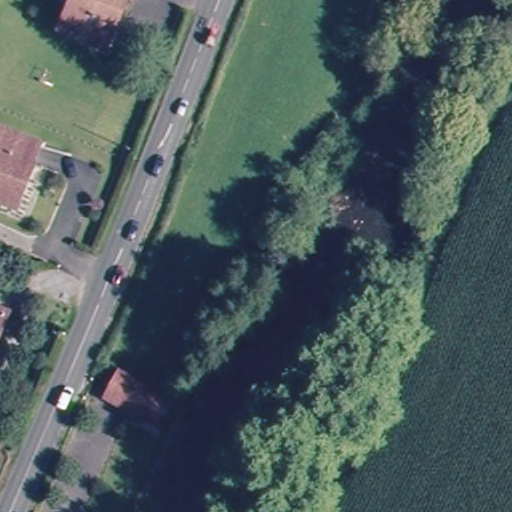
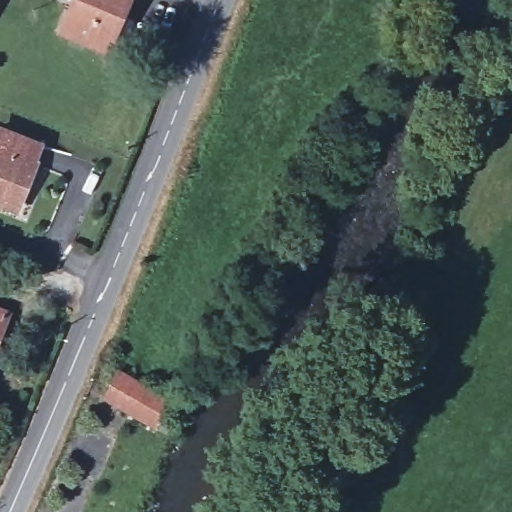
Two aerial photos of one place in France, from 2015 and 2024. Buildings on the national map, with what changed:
unchanged [(62,30),(75,0),(124,0),(105,48),(62,30)]
unchanged [(42,140),(19,199),(0,193),(0,126),(42,140)]
unchanged [(2,319),(0,325),(0,318),(2,319)]
unchanged [(152,424),(107,404),(119,374),(167,394),(152,424)]

